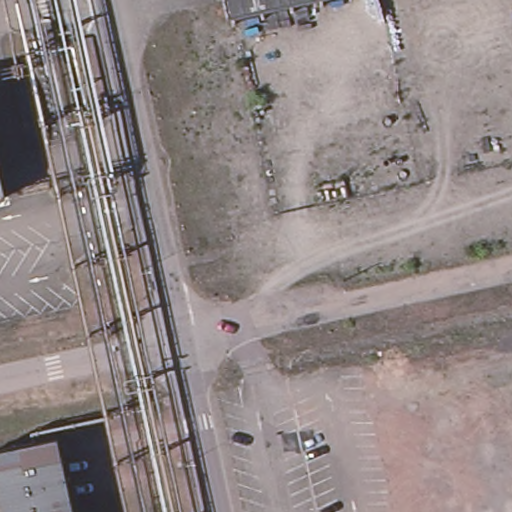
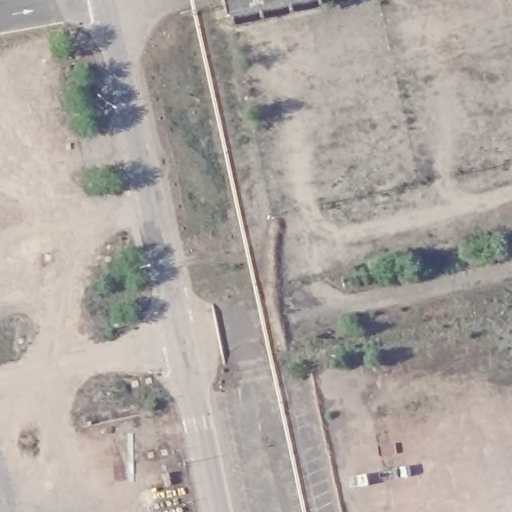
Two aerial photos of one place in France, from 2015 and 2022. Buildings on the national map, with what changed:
unchanged [(223,0),(311,0),(227,18),(223,0)]
demolished [(10,195),(0,198),(0,159),(10,195)]
demolished [(0,496),(0,450),(57,437),(74,512),(4,512),(0,496)]

